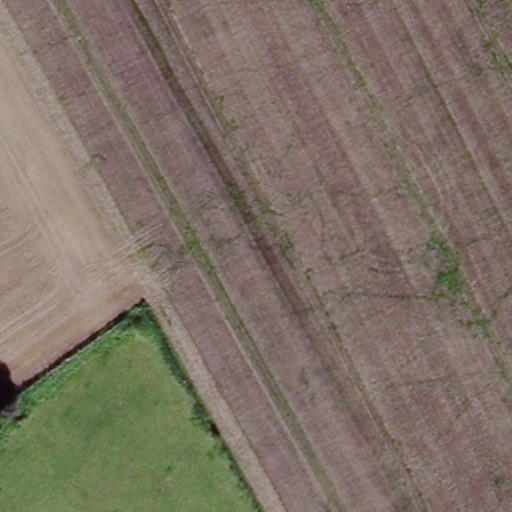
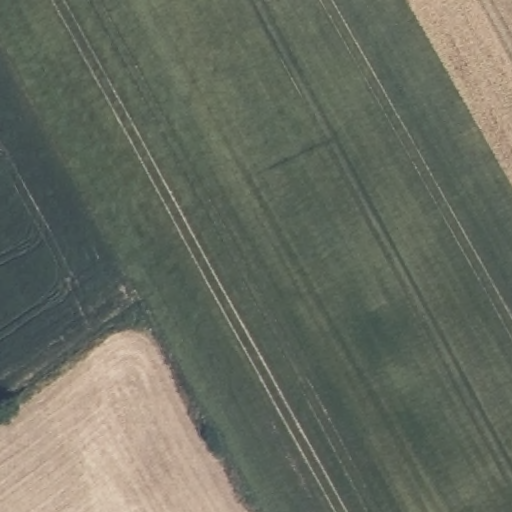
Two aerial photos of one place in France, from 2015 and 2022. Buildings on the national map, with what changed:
[]

